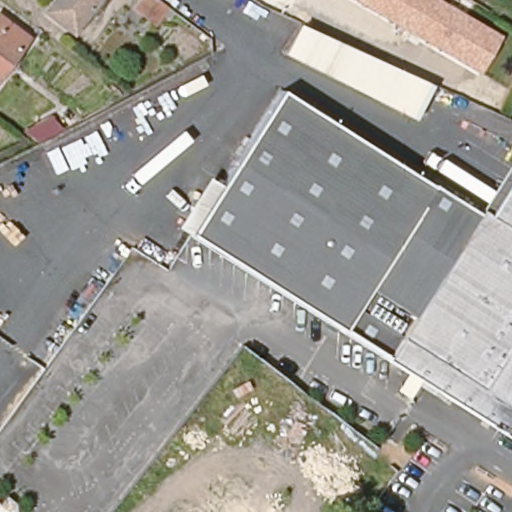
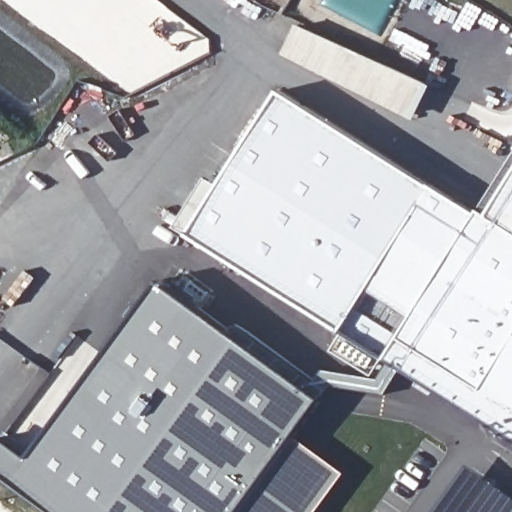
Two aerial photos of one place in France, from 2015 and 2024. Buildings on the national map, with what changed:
unchanged [(48,16),(59,0),(101,0),(77,35),(48,16)]
unchanged [(164,1),(155,14),(137,1),(138,0),(162,0),(164,1)]
unchanged [(0,17),(31,39),(0,80),(0,17)]
unchanged [(415,121),(327,76),(282,54),(296,25),(432,85),(415,121)]
unchanged [(221,186),(281,92),(437,188),(360,307),(307,273),(385,170),(370,160),(281,291),(180,230),(210,180),(221,186)]
unchanged [(57,120),(67,127),(40,142),(30,135),(57,120)]
unchanged [(370,160),(385,170),(307,273),(360,307),(437,188),(476,212),(481,205),(512,161),(512,434),(281,291),(370,160)]
demolished [(6,308),(0,303),(0,236),(30,196),(71,227),(6,308)]
new [(0,447),(5,440),(31,458),(161,281),(321,398),(295,436),(347,473),(318,512),(54,512),(0,471),(0,447)]
demolished [(272,390),(247,421),(225,405),(263,360),(396,466),(385,482),(272,390)]
demolished [(249,512),(227,512),(236,501),(249,512)]

